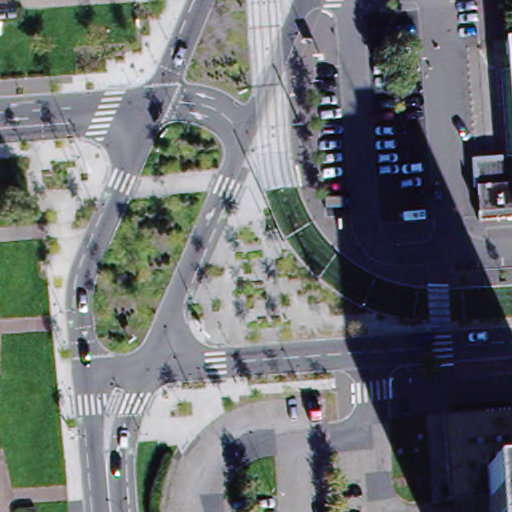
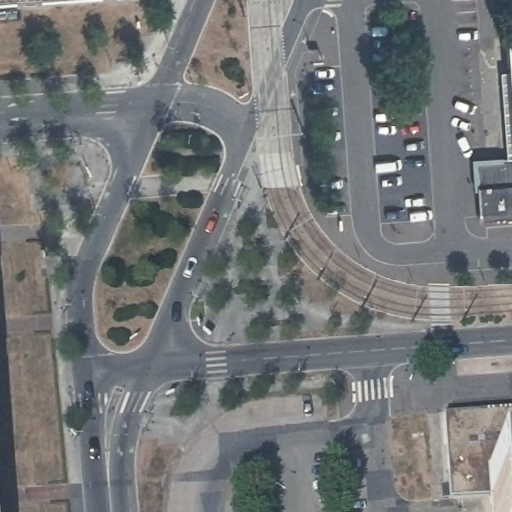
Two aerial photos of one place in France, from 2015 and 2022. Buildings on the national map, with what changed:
unchanged [(508,39),(512,39),(512,94),(509,55),(508,39)]
unchanged [(476,162),(512,159),(512,219),(480,222),(476,162)]
unchanged [(509,409),(512,409),(512,463),(492,464),(487,497),(449,500),(444,415),(452,414),(509,409)]
unchanged [(512,463),(512,512),(491,512),(490,497),(487,497),(492,464),(512,463)]

